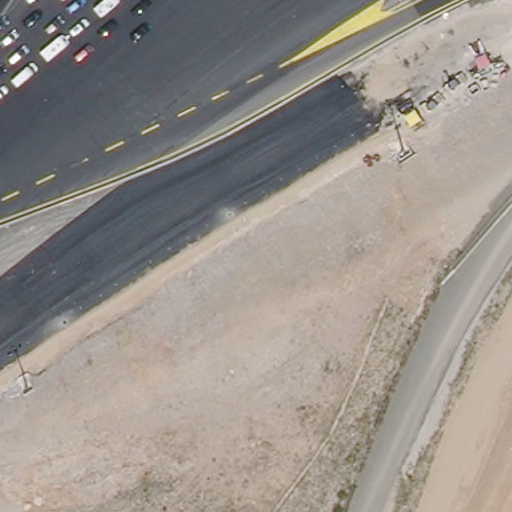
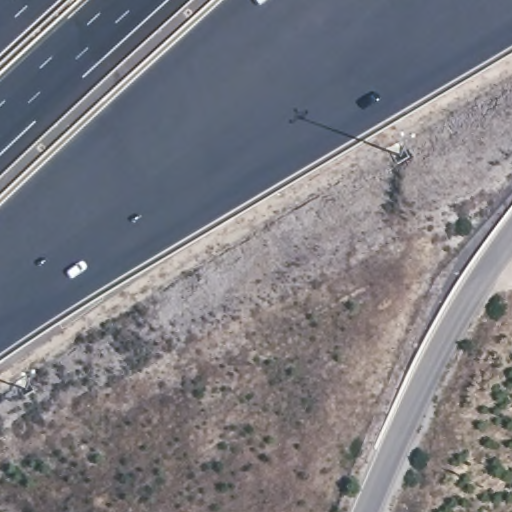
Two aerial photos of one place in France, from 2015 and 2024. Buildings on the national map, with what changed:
[]

